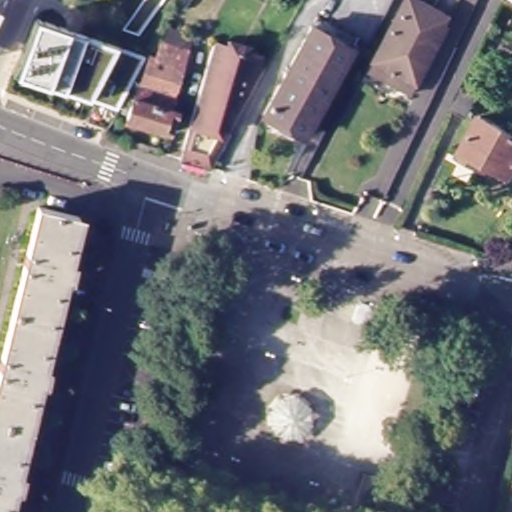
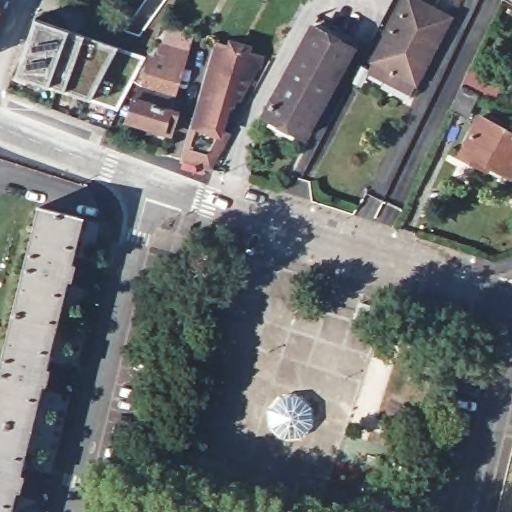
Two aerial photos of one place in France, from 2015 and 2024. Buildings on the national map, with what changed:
unchanged [(502,0),(512,0),(512,7),(502,1),(502,0)]
unchanged [(366,74),(372,63),(404,3),(445,24),(426,58),(412,84),(406,95),(366,74)]
unchanged [(324,4),(360,25),(297,137),(260,116),(324,4)]
unchanged [(51,19),(146,54),(115,109),(19,73),(14,71),(36,13),(51,19)]
unchanged [(175,83),(169,106),(177,109),(170,131),(126,117),(132,94),(135,95),(148,55),(156,58),(163,39),(169,23),(193,30),(188,48),(183,63),(175,83)]
unchanged [(265,54),(240,100),(233,98),(224,126),(234,129),(215,165),(184,156),(193,126),(220,40),(265,54)]
unchanged [(466,119),(449,111),(461,86),(478,95),(466,119)]
unchanged [(512,136),(512,168),(508,175),(479,160),(475,169),(456,159),(479,118),(512,136)]
unchanged [(39,208),(79,218),(68,264),(76,265),(73,279),(65,277),(42,369),(51,371),(47,384),(39,383),(16,475),(24,477),(21,490),(13,488),(7,512),(0,512),(0,367),(39,208)]
unchanged [(382,309),(376,329),(352,322),(359,301),(382,309)]
unchanged [(312,407),(314,426),(301,439),(283,441),(269,429),(268,410),(280,396),(298,394),(312,407)]

